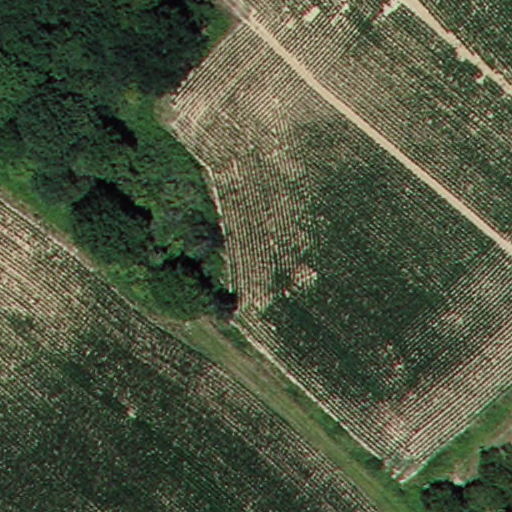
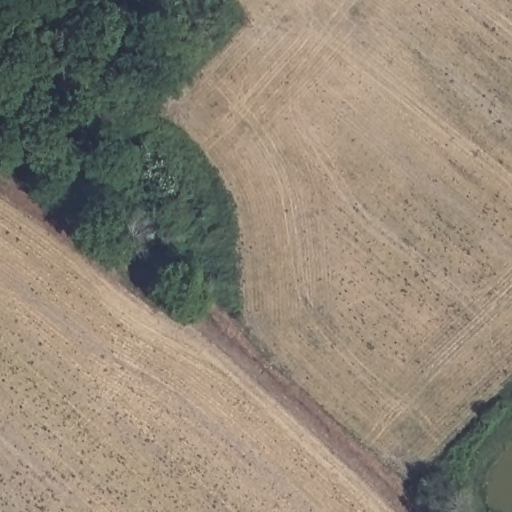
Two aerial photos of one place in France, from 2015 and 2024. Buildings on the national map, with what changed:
[]

